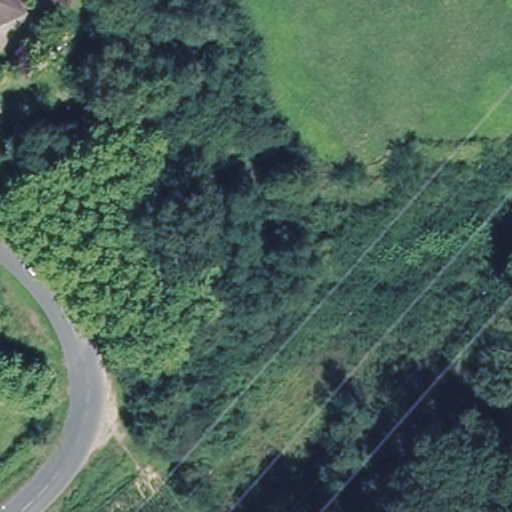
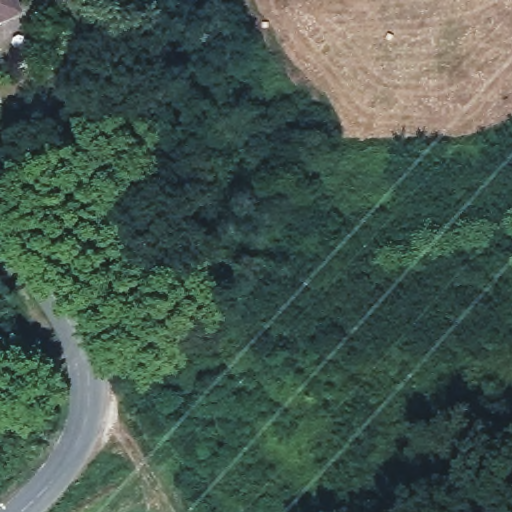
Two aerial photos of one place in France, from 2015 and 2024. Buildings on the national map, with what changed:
unchanged [(0,0),(20,0),(25,11),(0,23),(0,0)]

